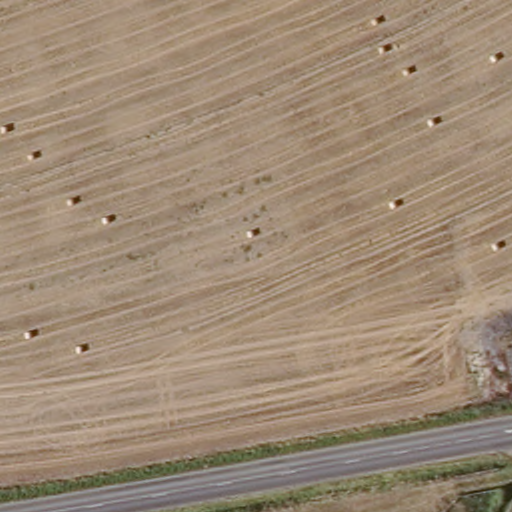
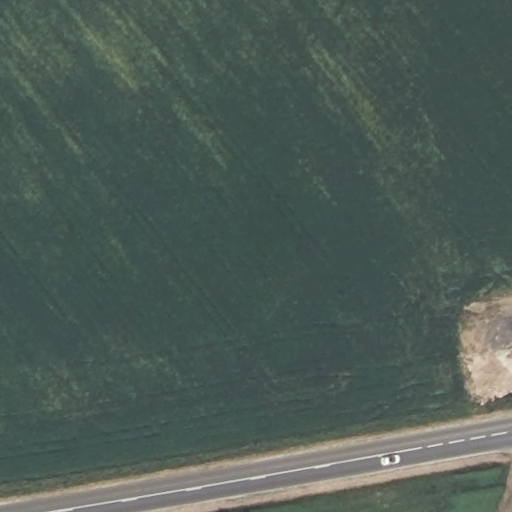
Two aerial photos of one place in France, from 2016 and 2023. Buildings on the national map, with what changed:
unchanged [(512,346),(512,372),(508,372),(502,348),(512,346)]

